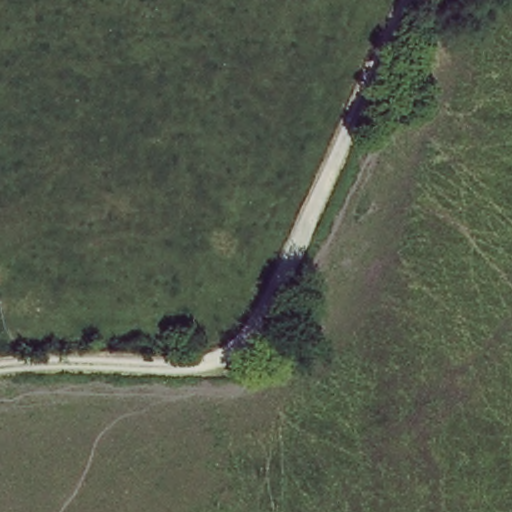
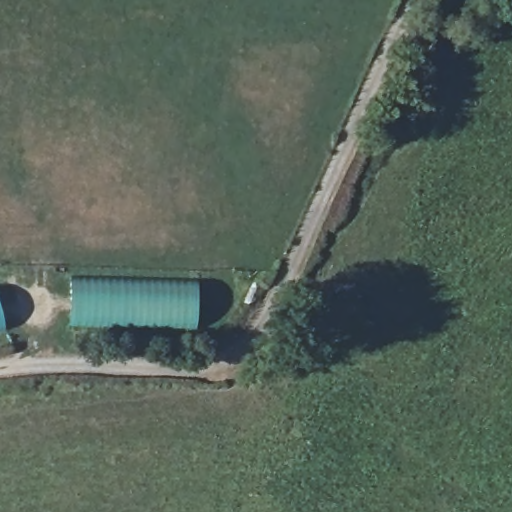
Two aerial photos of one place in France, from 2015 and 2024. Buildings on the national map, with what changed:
new [(72,279),(200,283),(199,329),(68,326),(72,279)]
new [(3,332),(0,333),(0,314),(3,332)]

